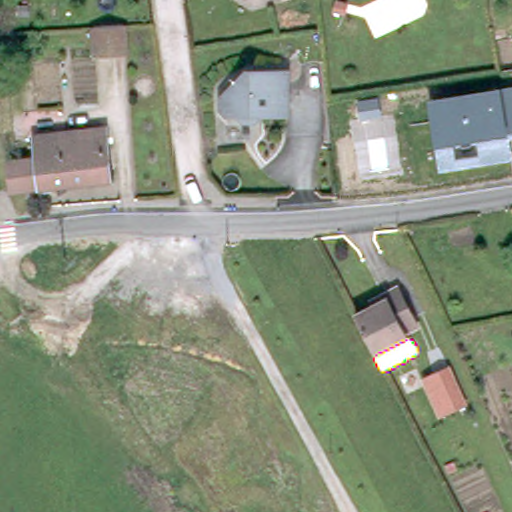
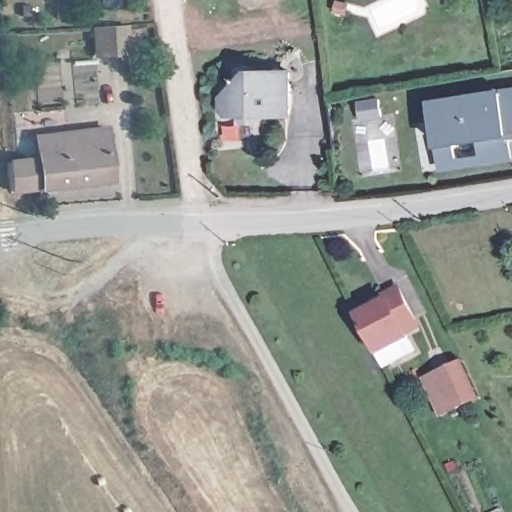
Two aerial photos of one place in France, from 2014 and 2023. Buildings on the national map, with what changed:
unchanged [(94,53),(92,27),(126,25),(128,51),(94,53)]
unchanged [(264,119),(261,127),(248,127),(243,118),(233,118),(225,105),(240,85),(256,85),(257,78),(291,79),(289,120),(264,119)]
unchanged [(512,131),(509,132),(512,149),(512,163),(440,176),(427,99),(512,85),(512,131)]
unchanged [(116,189),(15,198),(13,172),(43,167),(41,149),(66,147),(112,142),(116,189)]
unchanged [(356,315),(386,298),(384,295),(397,287),(420,326),(428,338),(384,364),(377,351),(356,315)]
unchanged [(453,361),(468,391),(452,399),(442,405),(425,375),(436,370),(453,361)]

